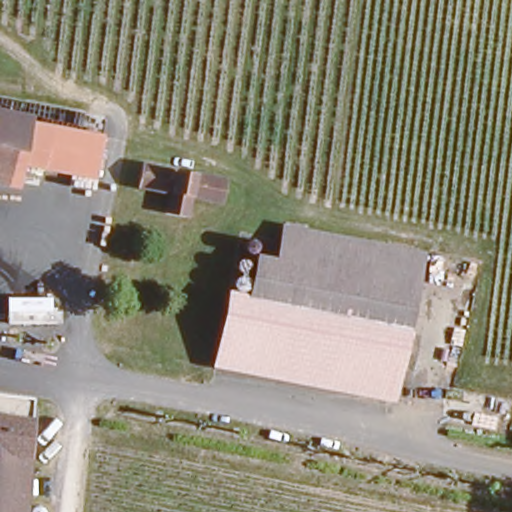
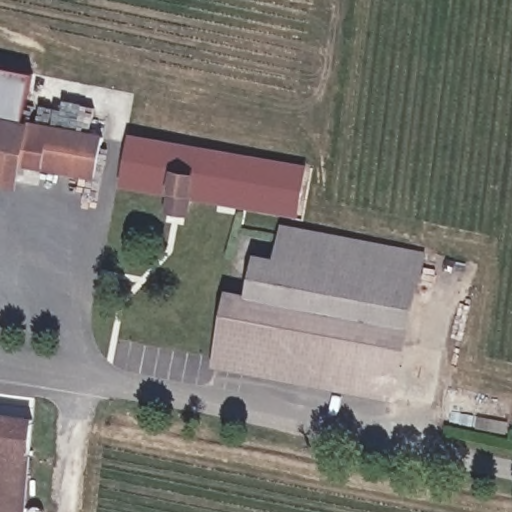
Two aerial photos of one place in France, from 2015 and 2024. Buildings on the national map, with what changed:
new [(22,112),(0,107),(0,66),(34,73),(22,112)]
unchanged [(97,165),(12,148),(10,166),(0,163),(0,107),(105,129),(97,165)]
new [(295,219),(188,197),(184,219),(165,216),(170,194),(120,184),(130,138),(305,173),(295,219)]
demolished [(223,174),(219,193),(187,186),(182,210),(164,206),(170,184),(136,176),(140,155),(223,174)]
unchanged [(417,253),(386,397),(208,358),(224,288),(240,292),(248,257),(270,262),(280,225),(296,228),(417,253)]
unchanged [(31,421),(21,512),(0,512),(0,416),(31,421)]

